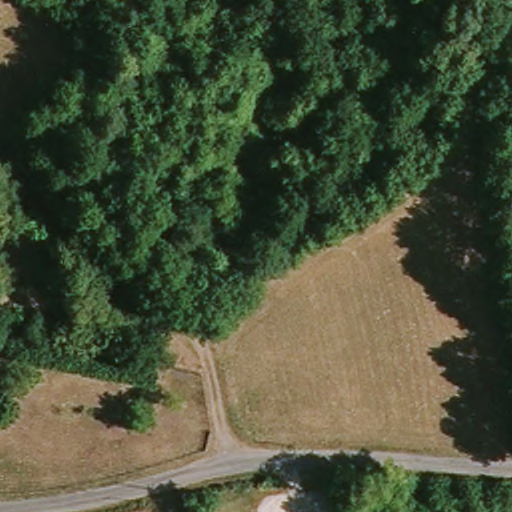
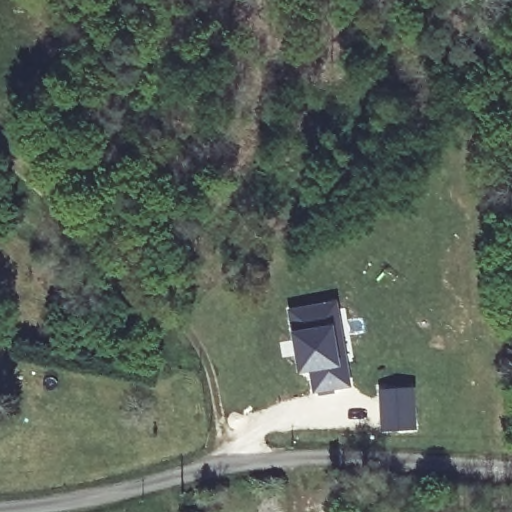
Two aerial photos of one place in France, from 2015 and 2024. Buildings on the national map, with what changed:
new [(337,299),(345,339),(351,387),(312,395),(308,372),(297,374),(287,307),(337,299)]
new [(416,386),(417,430),(380,432),(378,388),(416,386)]

